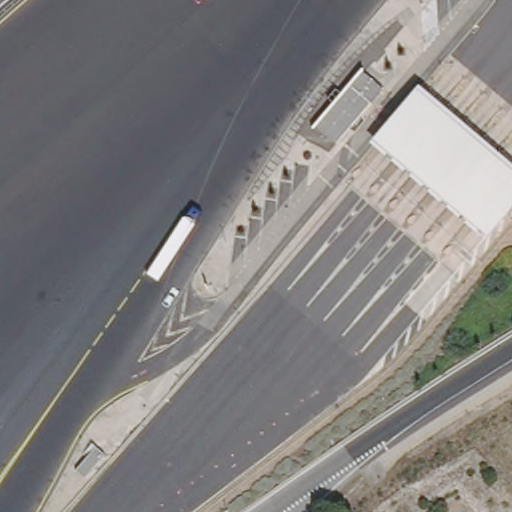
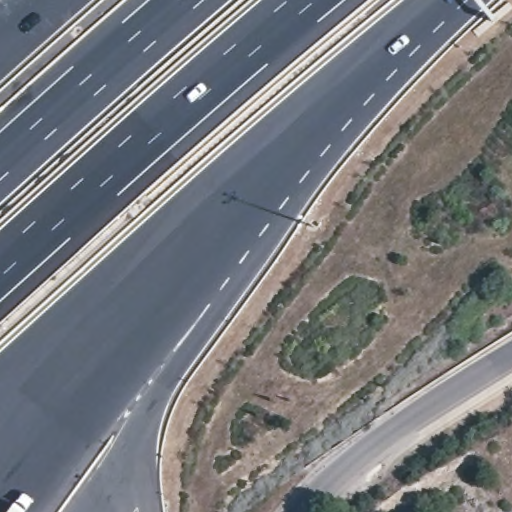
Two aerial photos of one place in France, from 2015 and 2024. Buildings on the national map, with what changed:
demolished [(316,124),(363,68),(384,88),(337,144),(316,124)]
demolished [(370,140),(422,81),(512,159),(512,213),(488,243),(370,140)]

